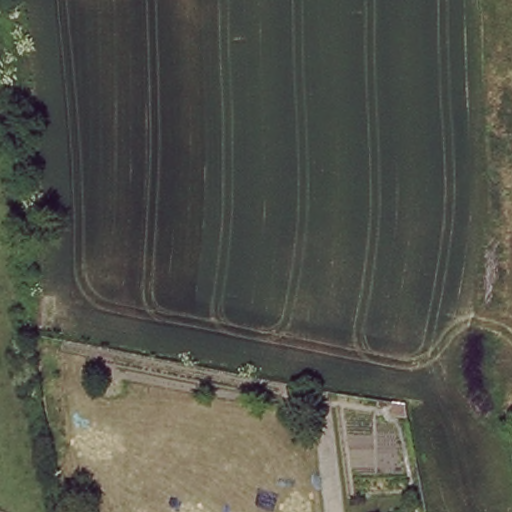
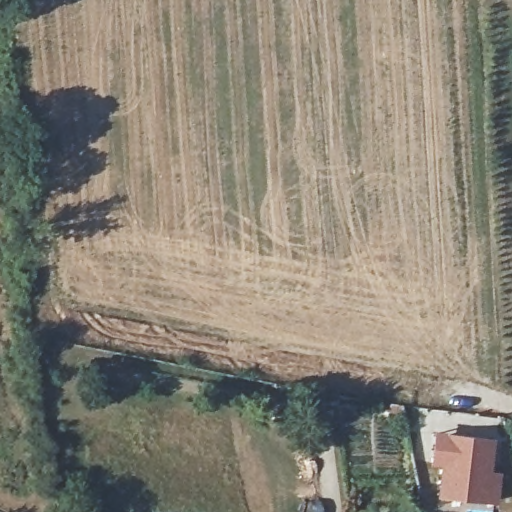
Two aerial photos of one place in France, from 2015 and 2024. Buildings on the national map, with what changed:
new [(495,436),(491,470),(500,471),(496,503),(435,495),(439,467),(428,465),(433,430),(495,436)]

